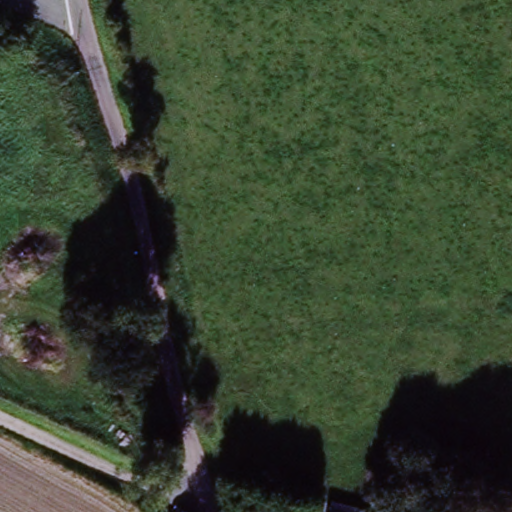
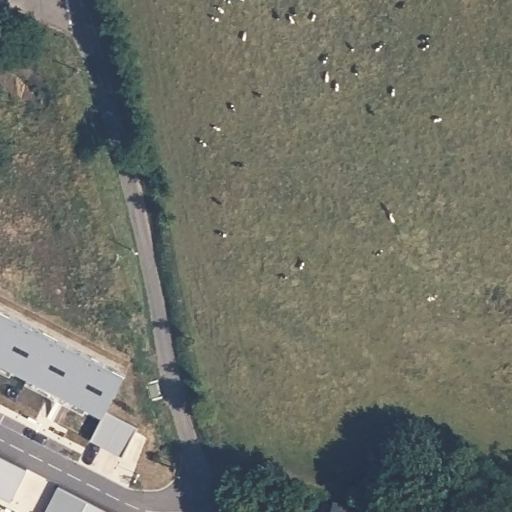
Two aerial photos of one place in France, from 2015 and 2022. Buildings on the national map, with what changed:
new [(126,373),(109,411),(139,428),(125,457),(91,441),(105,415),(0,362),(0,310),(126,373)]
unchanged [(410,502),(426,507),(425,512),(407,512),(410,502)]
unchanged [(363,512),(327,512),(329,506),(363,512)]

